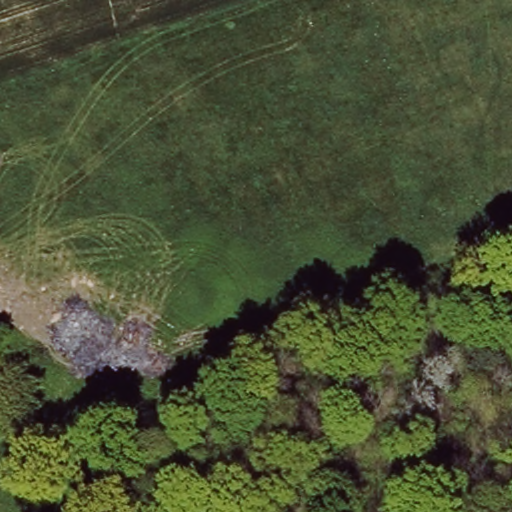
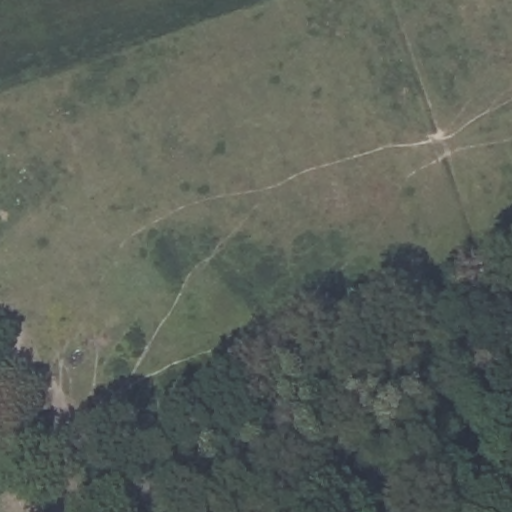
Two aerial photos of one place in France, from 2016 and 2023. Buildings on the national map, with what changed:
[]

